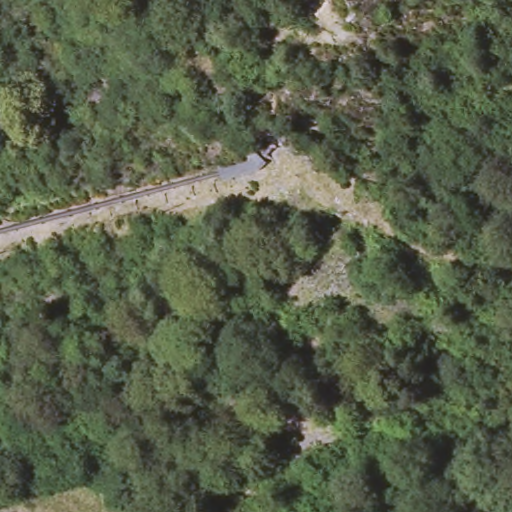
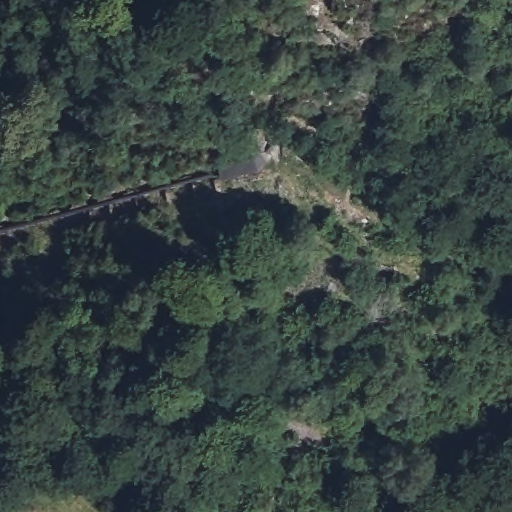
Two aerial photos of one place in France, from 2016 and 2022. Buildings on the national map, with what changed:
unchanged [(222,184),(218,175),(255,159),(269,185),(230,206),(222,184)]

